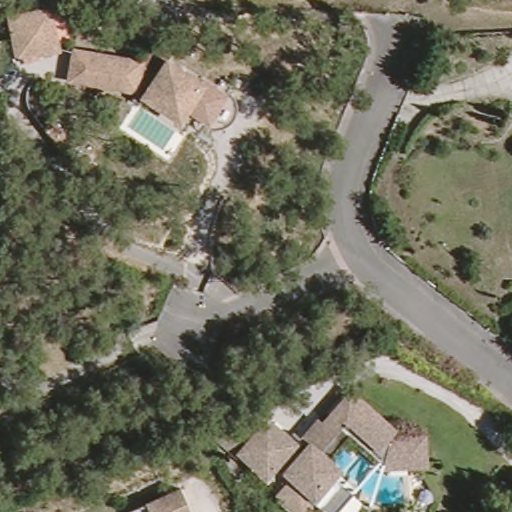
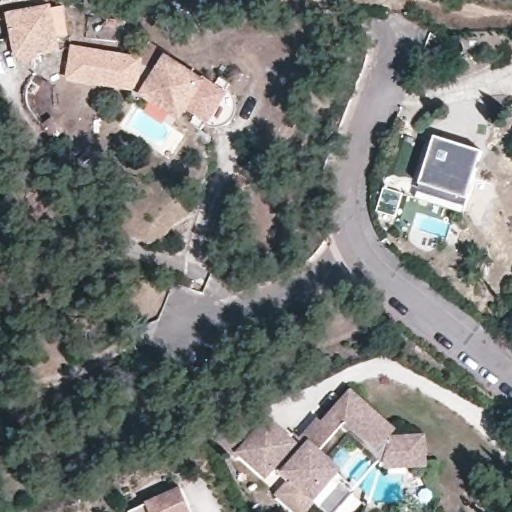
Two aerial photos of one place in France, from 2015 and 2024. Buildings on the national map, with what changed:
unchanged [(15,58),(10,21),(46,15),(51,52),(15,58)]
unchanged [(131,56),(141,39),(161,52),(159,54),(193,76),(195,73),(206,81),(190,107),(183,102),(178,99),(172,110),(126,81),(63,72),(66,47),(131,56)]
unchanged [(213,70),(223,77),(217,87),(229,95),(213,120),(201,113),(195,124),(184,117),(190,107),(206,81),(213,70)]
unchanged [(38,124),(48,117),(61,132),(51,140),(38,124)]
new [(481,152),(468,197),(466,207),(419,191),(421,184),(435,139),(481,152)]
unchanged [(272,462),(268,467),(245,446),(270,417),(294,439),(293,441),(295,443),(305,432),(301,428),(315,412),(322,418),(350,387),(365,400),(361,403),(363,404),(365,402),(367,401),(371,401),(374,403),(375,406),(375,407),(373,410),(372,412),(373,413),(377,410),(391,422),(386,428),(390,432),(416,430),(416,437),(420,437),(422,439),(423,442),(423,443),(422,446),(420,448),(417,449),(417,454),(381,456),(350,428),(325,457),(355,484),(332,508),(315,495),(308,502),(286,482),(290,477),(280,469),(272,462)]
unchanged [(185,484),(199,512),(137,512),(135,506),(185,484)]

